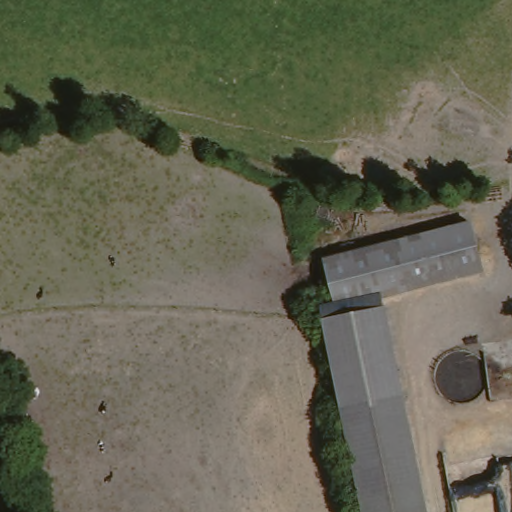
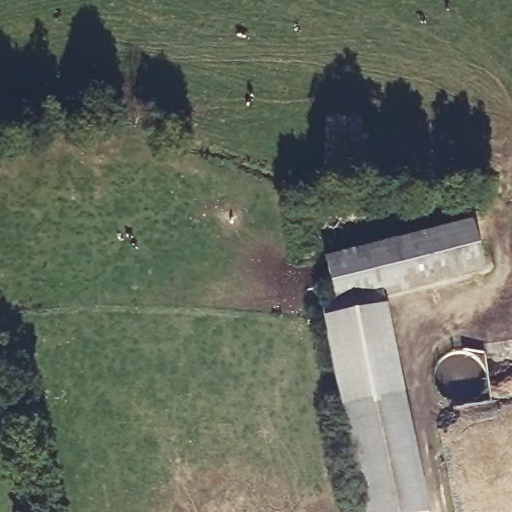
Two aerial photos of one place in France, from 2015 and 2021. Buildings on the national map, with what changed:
unchanged [(481,220),(493,268),(313,319),(303,274),(481,220)]
unchanged [(326,328),(383,314),(402,406),(344,417),(326,328)]
unchanged [(402,406),(423,512),(364,512),(344,417),(402,406)]

